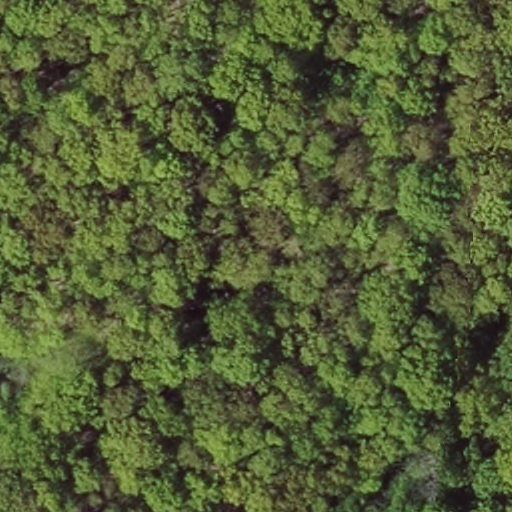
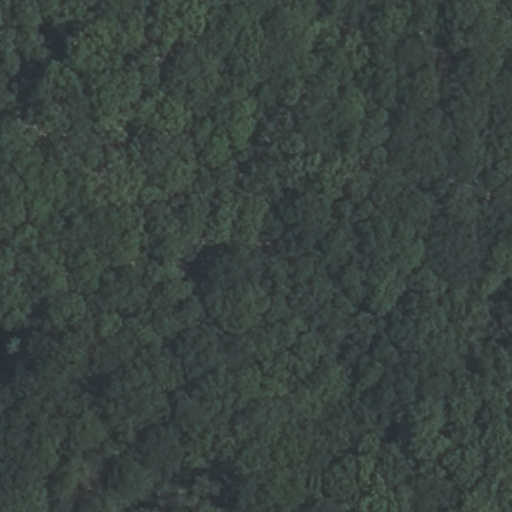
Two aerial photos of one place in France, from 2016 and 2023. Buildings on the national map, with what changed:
unchanged [(175,250),(220,260),(211,306),(163,296),(175,250)]

